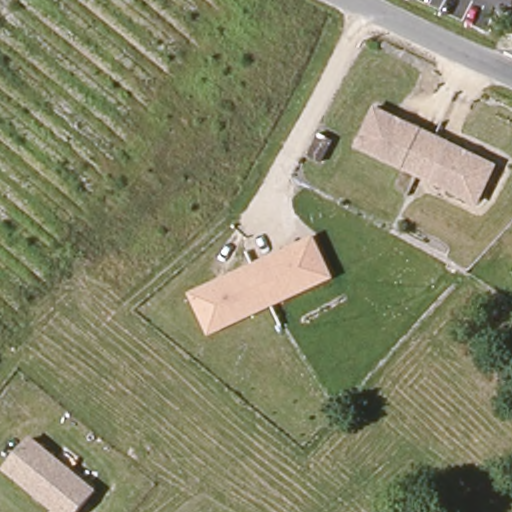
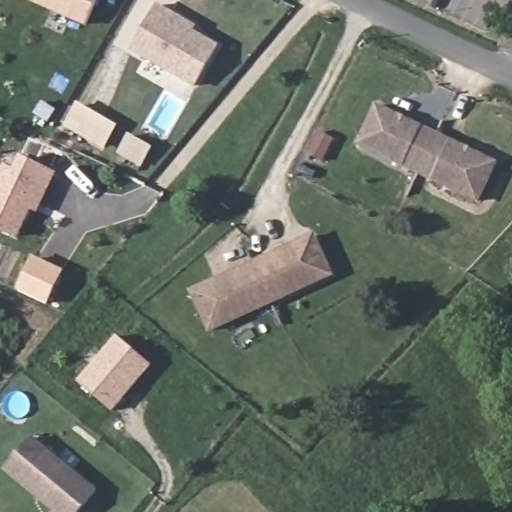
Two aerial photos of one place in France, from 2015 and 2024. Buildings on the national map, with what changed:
new [(25,0),(93,0),(81,26),(25,0)]
new [(168,15),(190,28),(187,33),(212,48),(190,87),(128,51),(154,7),(168,15)]
unchanged [(401,161),(356,139),(373,101),(492,158),(475,197),(429,174),(415,167),(401,161)]
new [(118,127),(104,151),(63,126),(78,102),(118,127)]
new [(25,212),(11,241),(0,236),(0,172),(9,177),(20,152),(52,167),(40,192),(31,215),(25,212)]
unchanged [(315,235),(333,277),(208,333),(189,291),(315,235)]
new [(16,290),(33,255),(65,271),(49,305),(16,290)]
new [(114,337),(147,366),(107,413),(74,386),(114,337)]
unchanged [(29,433),(93,487),(72,512),(53,512),(51,510),(54,506),(40,495),(3,464),(29,433)]

